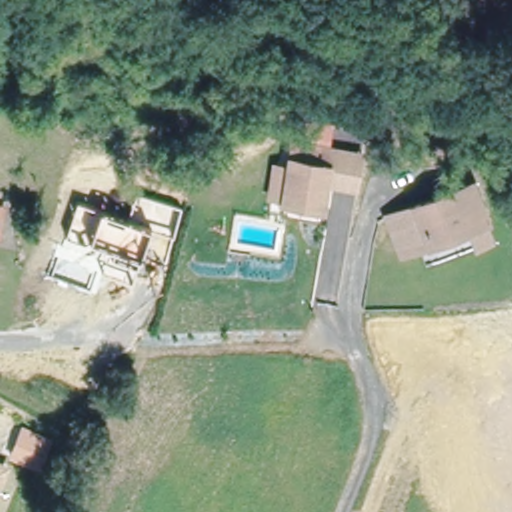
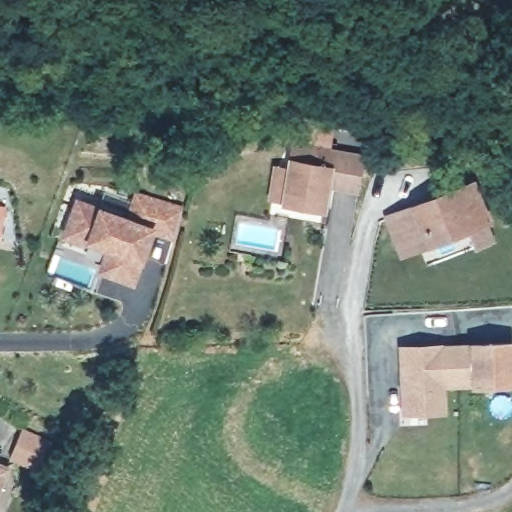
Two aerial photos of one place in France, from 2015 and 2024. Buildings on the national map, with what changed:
unchanged [(273,170),(285,172),(290,147),(328,154),(322,187),(318,209),(280,202),(268,200),(273,170)]
unchanged [(360,160),(354,193),(322,187),(328,154),(360,160)]
unchanged [(476,249),(469,230),(430,245),(416,209),(473,188),(487,223),(485,224),(492,243),(476,249)]
unchanged [(129,217),(136,193),(181,208),(174,236),(150,230),(132,281),(101,270),(109,250),(65,235),(77,202),(129,217)]
unchanged [(402,256),(388,220),(416,209),(430,245),(402,256)]
new [(470,343),(512,341),(512,386),(471,388),(446,389),(447,413),(401,416),(398,346),(470,343)]
unchanged [(54,439),(42,466),(14,454),(26,427),(54,439)]
unchanged [(0,481),(0,476),(1,477),(0,481)]

